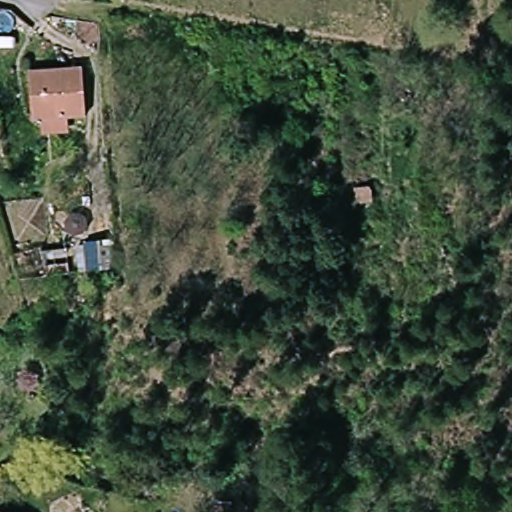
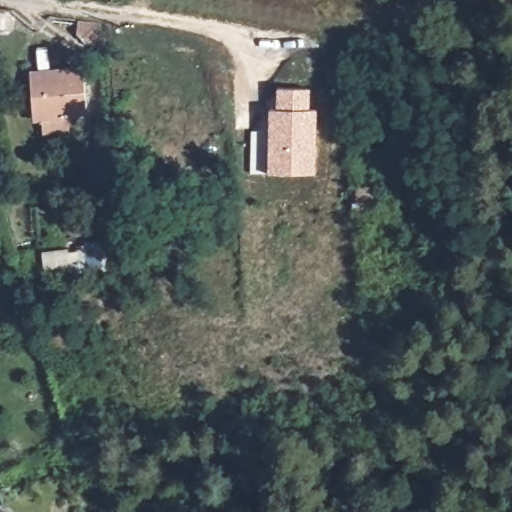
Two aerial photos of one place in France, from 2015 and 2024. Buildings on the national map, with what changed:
unchanged [(86,74),(88,125),(36,127),(35,78),(86,74)]
new [(315,173),(268,173),(269,108),(275,109),(276,88),(310,89),(311,109),(316,108),(315,173)]
unchanged [(66,245),(69,269),(46,274),(43,248),(66,245)]
unchanged [(4,512),(0,512),(0,509),(1,510),(4,512)]

